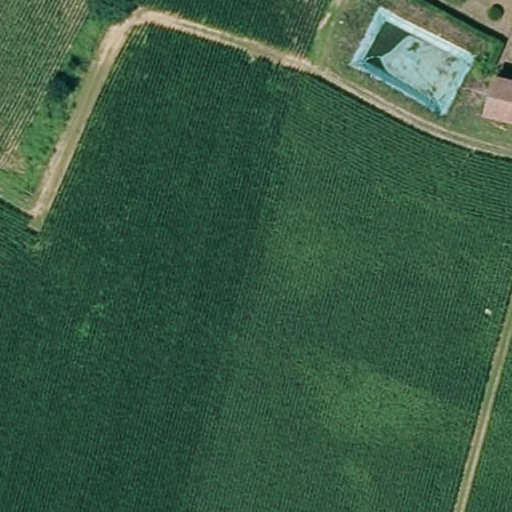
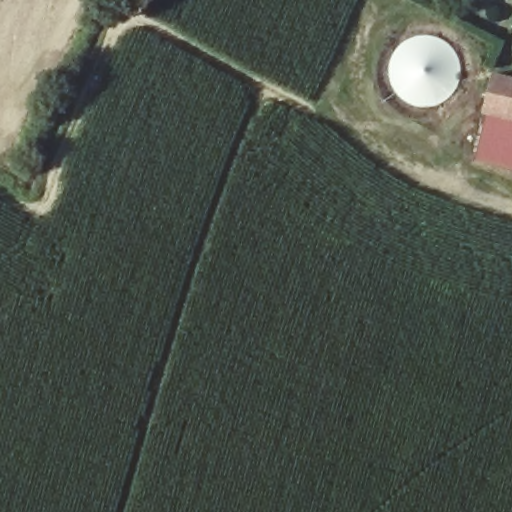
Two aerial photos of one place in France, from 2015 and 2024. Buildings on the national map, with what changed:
unchanged [(502,76),(512,80),(512,116),(492,110),(502,76)]
new [(479,159),(492,110),(512,116),(512,167),(479,159)]

